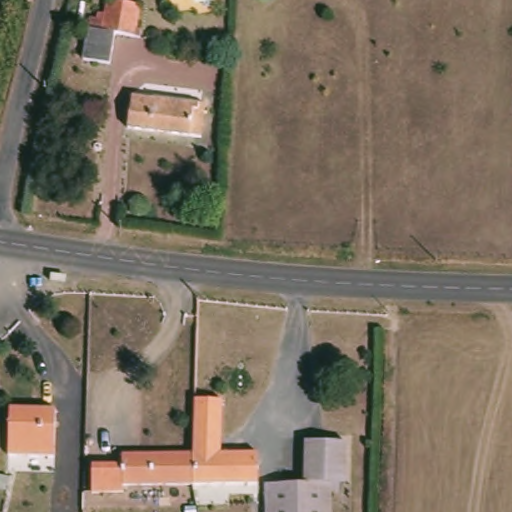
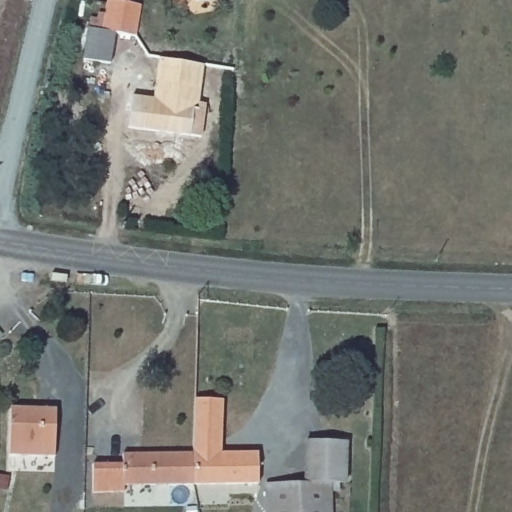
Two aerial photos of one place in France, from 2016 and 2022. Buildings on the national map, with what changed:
unchanged [(78,58),(83,26),(99,29),(104,0),(134,5),(130,28),(136,29),(135,36),(112,31),(108,63),(78,58)]
unchanged [(129,95),(157,100),(157,96),(208,104),(202,143),(123,131),(129,95)]
unchanged [(193,401),(218,402),(216,454),(257,455),(259,485),(192,486),(189,455),(193,401)]
unchanged [(12,412),(54,410),(54,456),(10,457),(12,412)]
unchanged [(300,483),(302,423),(340,423),(340,482),(334,484),(300,483)]
unchanged [(192,486),(117,483),(116,491),(88,492),(89,464),(109,463),(109,453),(189,455),(192,486)]
unchanged [(264,486),(300,483),(334,484),(334,512),(264,512),(264,486)]

